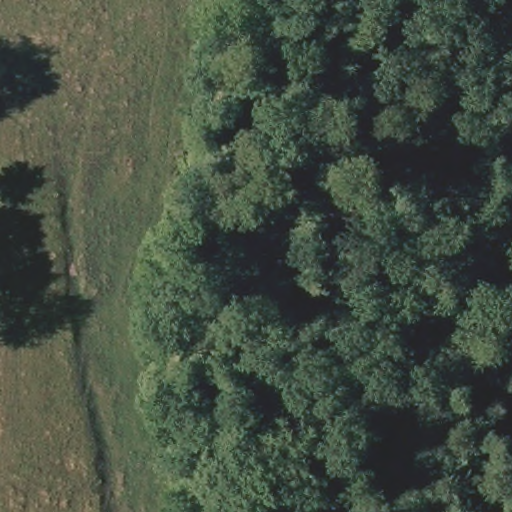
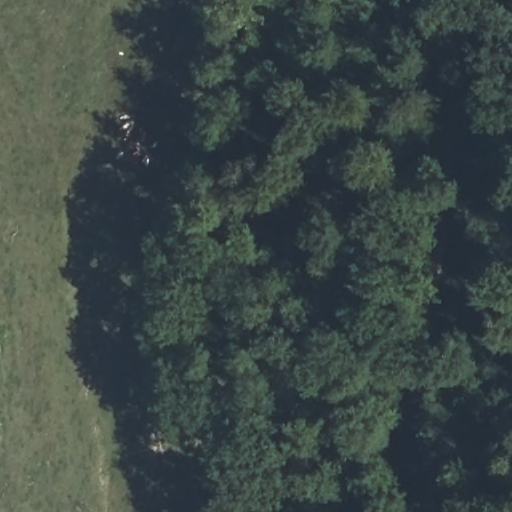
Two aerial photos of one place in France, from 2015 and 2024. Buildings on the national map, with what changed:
[]

